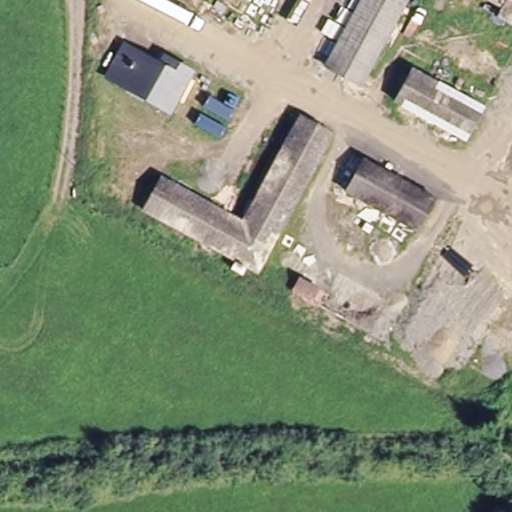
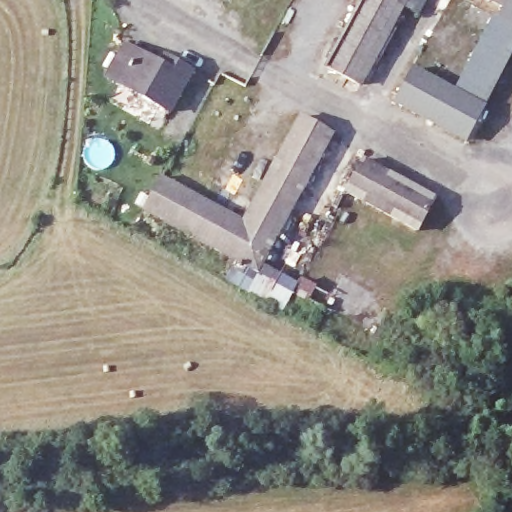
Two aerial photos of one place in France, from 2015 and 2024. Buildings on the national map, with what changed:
unchanged [(364,85),(331,67),(368,0),(410,0),(364,85)]
new [(492,14),(497,16),(502,6),(487,0),(512,0),(512,53),(484,107),(453,90),(492,14)]
unchanged [(160,64),(165,56),(192,71),(170,111),(107,76),(125,45),(160,64)]
unchanged [(413,69),(484,107),(466,140),(395,102),(413,69)]
unchanged [(252,267),(139,205),(156,173),(238,217),(295,111),(328,129),(252,267)]
unchanged [(435,198),(417,231),(346,192),(364,159),(435,198)]

